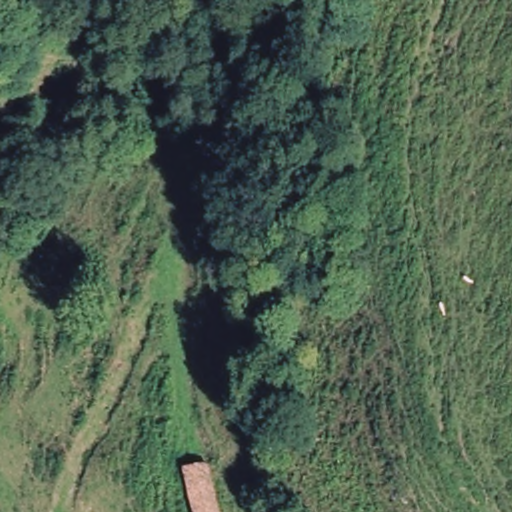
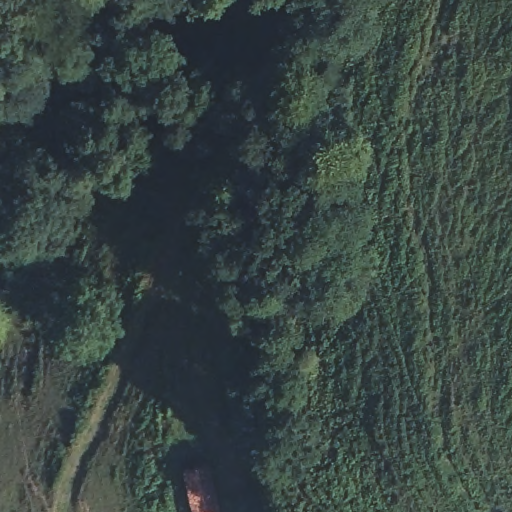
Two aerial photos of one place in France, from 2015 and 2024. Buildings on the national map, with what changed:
unchanged [(210,460),(222,512),(191,512),(181,470),(210,460)]

